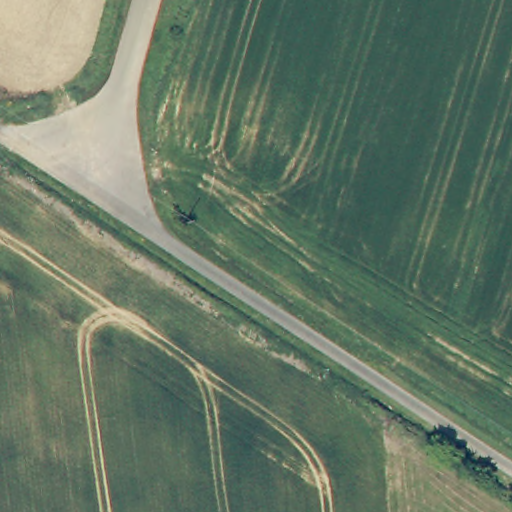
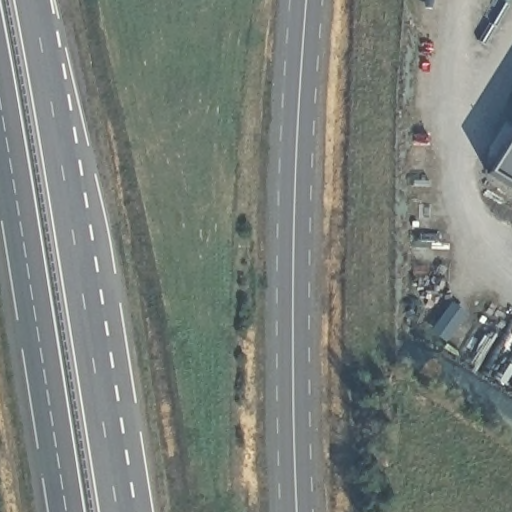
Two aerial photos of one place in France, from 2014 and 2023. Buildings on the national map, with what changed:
new [(512,140),(512,186),(492,174),(512,140)]

